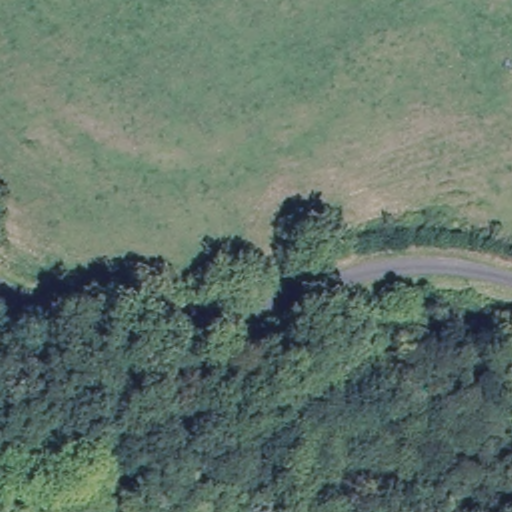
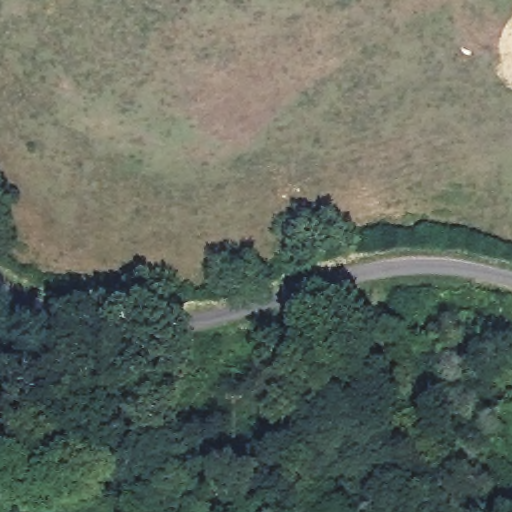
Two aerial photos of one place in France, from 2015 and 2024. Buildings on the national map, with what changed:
[]

